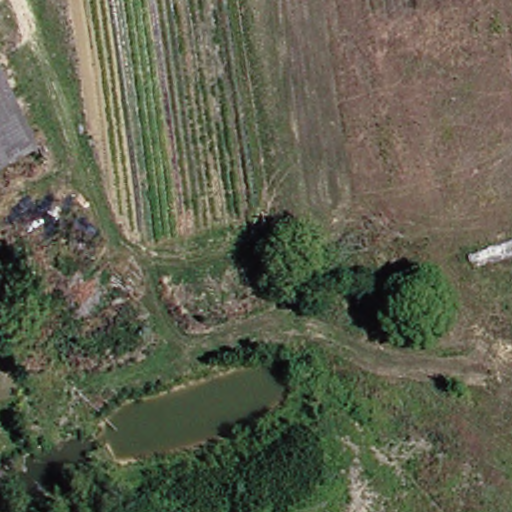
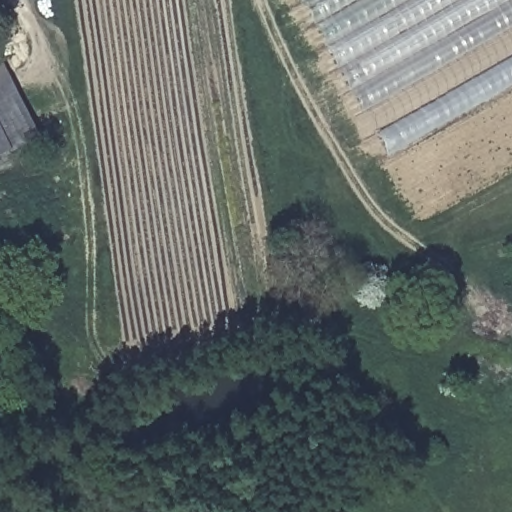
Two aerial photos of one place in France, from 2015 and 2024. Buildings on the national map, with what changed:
new [(387,158),(298,0),(512,0),(512,88),(387,158)]
demolished [(362,15),(359,0),(447,0),(362,15)]
unchanged [(4,161),(0,150),(0,55),(41,145),(4,161)]
unchanged [(0,163),(0,150),(4,161),(0,163)]

